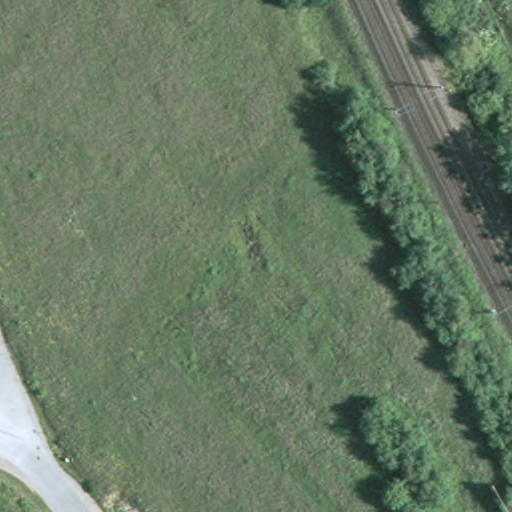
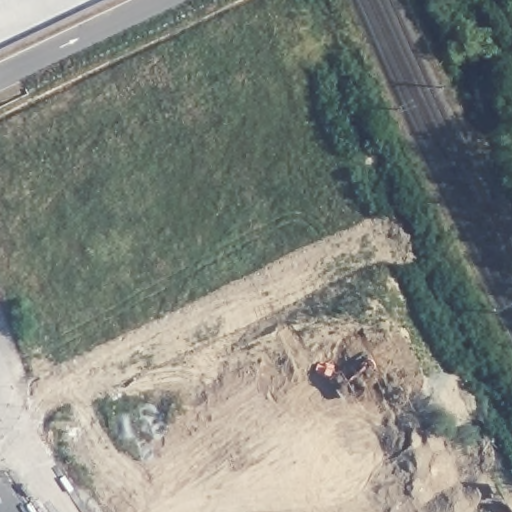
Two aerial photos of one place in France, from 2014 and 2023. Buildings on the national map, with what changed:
new [(0,50),(0,0),(106,0),(0,50)]

